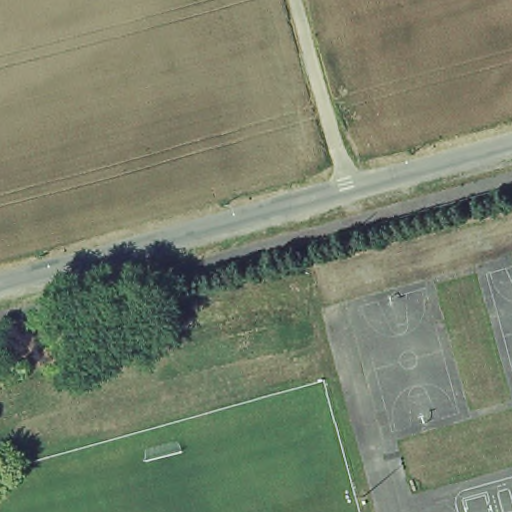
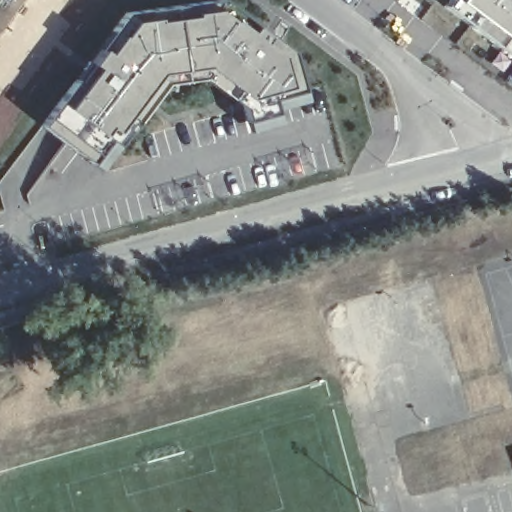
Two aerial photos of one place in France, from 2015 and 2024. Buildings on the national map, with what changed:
new [(0,6),(0,0),(10,0),(3,9),(0,6)]
new [(202,0),(231,0),(295,49),(310,101),(248,118),(245,107),(209,80),(170,85),(104,175),(42,127),(127,13),(202,0)]
new [(445,6),(449,0),(512,0),(512,58),(445,6)]

